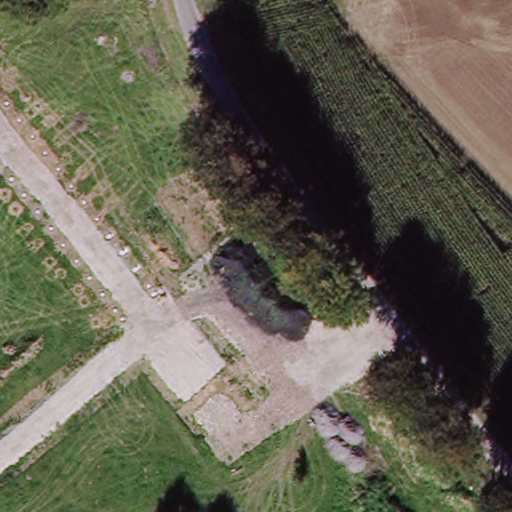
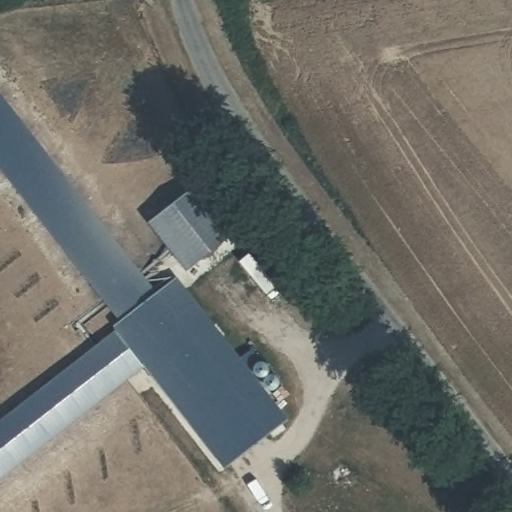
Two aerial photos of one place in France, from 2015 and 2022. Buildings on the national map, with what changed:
new [(156,295),(175,281),(285,426),(225,471),(145,366),(0,476),(0,422),(124,328),(0,164),(0,89),(156,295)]
new [(232,230),(184,267),(147,219),(194,182),(232,230)]

